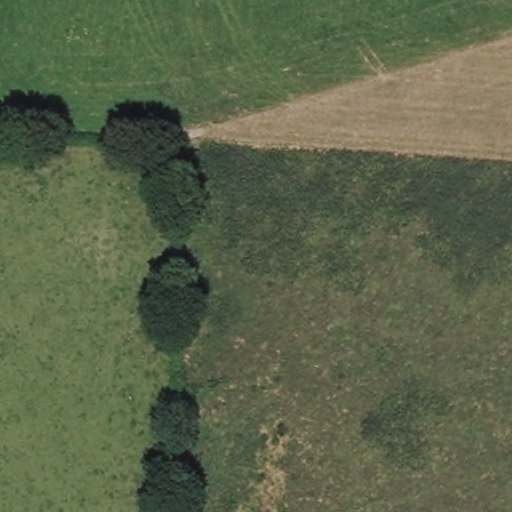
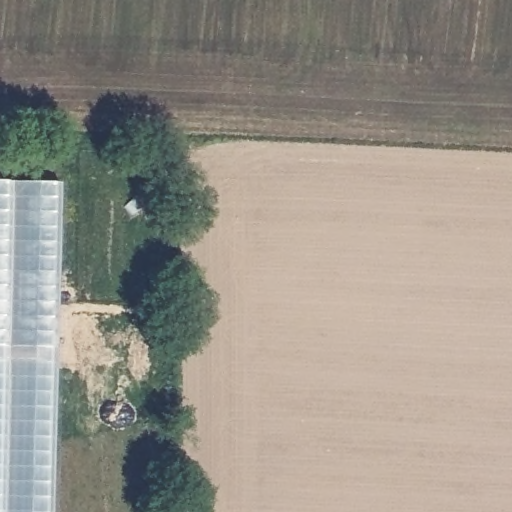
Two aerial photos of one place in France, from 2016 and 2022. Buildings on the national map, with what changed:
new [(59,182),(51,512),(0,512),(0,181),(59,182)]

